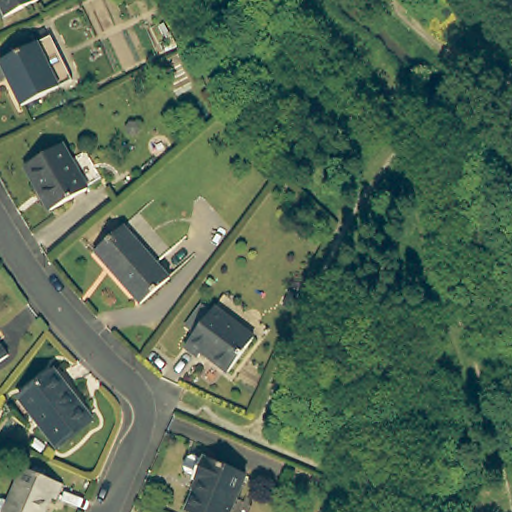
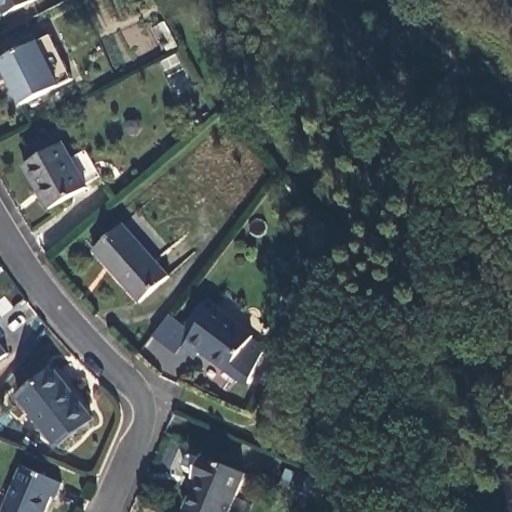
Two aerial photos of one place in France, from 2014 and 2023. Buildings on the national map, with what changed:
unchanged [(5,14),(0,5),(0,0),(33,0),(5,14)]
unchanged [(41,43),(63,87),(27,104),(5,60),(41,43)]
unchanged [(62,144),(87,187),(49,210),(24,165),(62,144)]
unchanged [(126,231),(173,283),(145,308),(98,255),(126,231)]
unchanged [(202,361),(189,351),(199,337),(190,331),(197,321),(205,309),(215,316),(217,312),(259,343),(233,377),(205,357),(202,361)]
unchanged [(0,369),(0,342),(13,360),(0,369)]
unchanged [(54,375),(92,425),(56,451),(19,402),(54,375)]
unchanged [(193,482),(194,480),(186,476),(184,471),(188,462),(194,460),(201,463),(202,461),(245,480),(231,512),(186,512),(199,485),(193,482)]
unchanged [(55,508),(51,507),(48,512),(8,512),(23,477),(61,493),(55,508)]

